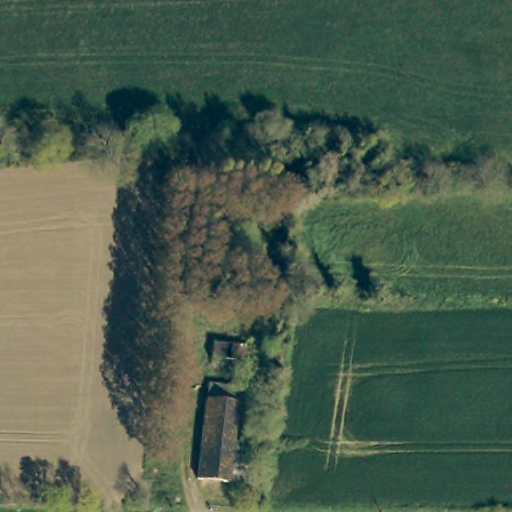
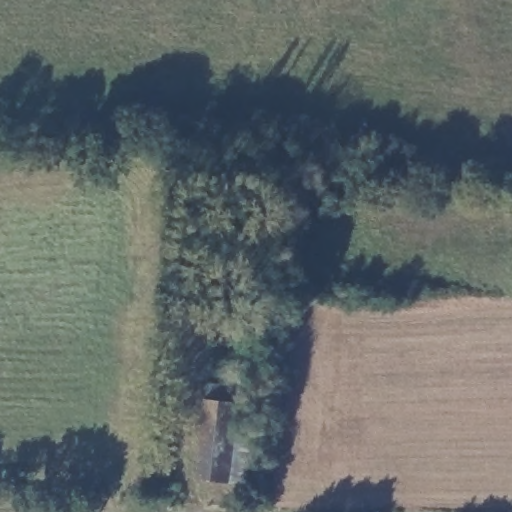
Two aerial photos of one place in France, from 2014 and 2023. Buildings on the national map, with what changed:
unchanged [(239,406),(233,453),(250,456),(247,481),(230,478),(230,482),(199,478),(207,401),(239,406)]

